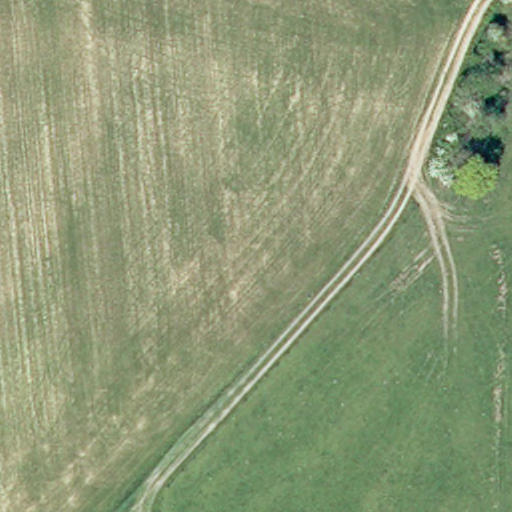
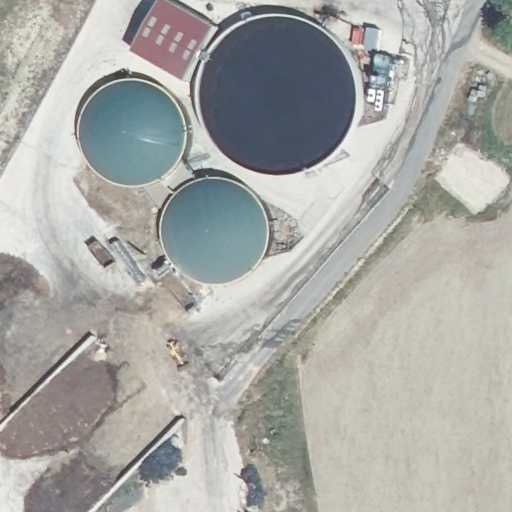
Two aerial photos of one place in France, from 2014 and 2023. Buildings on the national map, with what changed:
new [(165,0),(169,0),(218,30),(186,84),(134,53),(165,0)]

